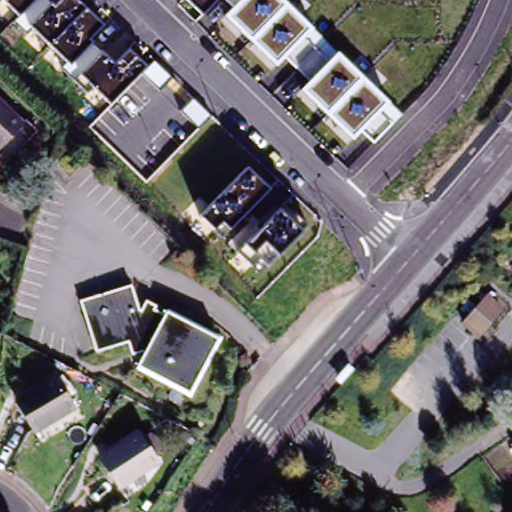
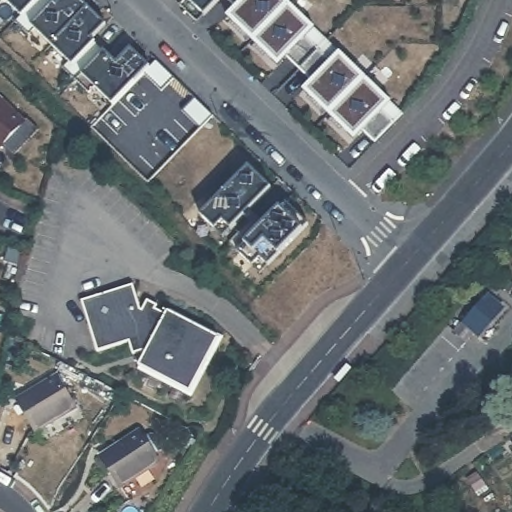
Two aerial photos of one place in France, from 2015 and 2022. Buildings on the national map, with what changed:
unchanged [(113,106),(4,0),(51,0),(57,6),(63,0),(78,0),(103,25),(89,40),(116,65),(130,50),(150,69),(113,106)]
unchanged [(187,0),(219,0),(204,16),(187,0)]
unchanged [(404,115),(374,144),(361,132),(353,141),(300,89),(308,80),(284,58),(276,66),(224,15),(233,6),(227,0),(286,0),(404,115)]
unchanged [(32,120),(36,116),(46,127),(26,147),(20,154),(9,144),(6,147),(3,145),(0,148),(0,90),(32,120)]
unchanged [(268,265),(260,258),(252,266),(195,210),(222,181),(246,158),(309,223),(268,265)]
unchanged [(146,355),(143,353),(135,355),(131,343),(99,353),(83,302),(134,287),(142,311),(144,312),(148,302),(157,308),(156,310),(167,316),(146,355)]
unchanged [(481,332),(469,322),(492,296),(507,310),(493,326),(484,336),(481,332)]
unchanged [(172,308),(224,337),(192,397),(139,368),(146,355),(167,316),(172,308)]
unchanged [(76,410),(39,432),(19,402),(58,379),(76,410)]
unchanged [(165,465),(128,488),(108,457),(145,434),(165,465)]

